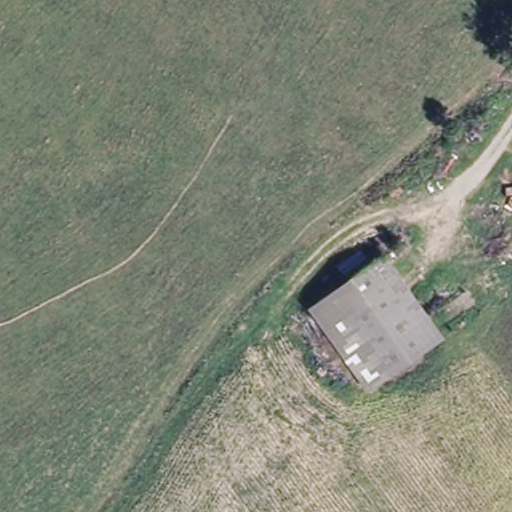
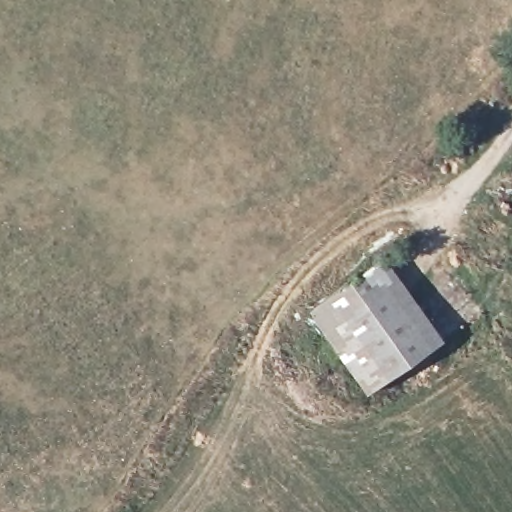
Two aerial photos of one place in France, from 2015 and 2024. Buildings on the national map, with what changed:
unchanged [(308,312),(385,257),(445,340),(365,396),(308,312)]

